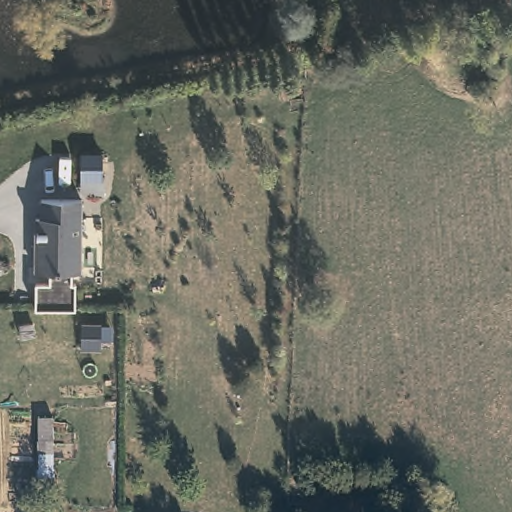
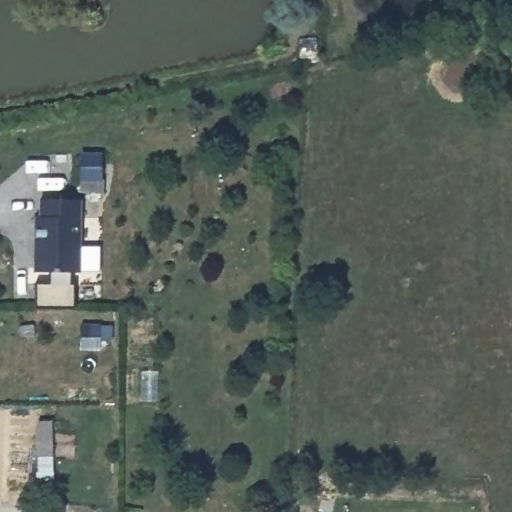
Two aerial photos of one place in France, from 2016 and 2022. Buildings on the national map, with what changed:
unchanged [(102,157),(100,177),(76,175),(77,155),(102,157)]
unchanged [(75,194),(75,270),(66,270),(59,270),(46,270),(43,270),(40,270),(29,270),(29,213),(35,213),(36,194),(75,194)]
unchanged [(31,330),(32,342),(19,344),(17,331),(31,330)]

